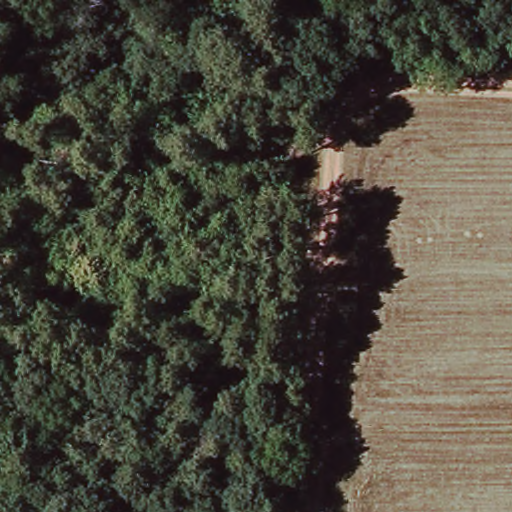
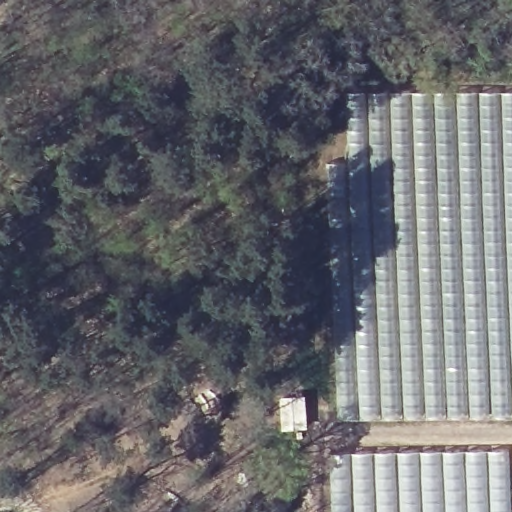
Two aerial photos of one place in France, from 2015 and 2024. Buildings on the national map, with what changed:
new [(354,290),(371,289),(374,233),(381,232),(382,235),(387,235),(387,228),(389,199),(387,162),(376,164),(377,169),(369,169),(364,94),(382,92),(512,91),(512,419),(502,419),(335,420),(334,343),(352,342),(354,290)]
new [(306,395),(308,428),(282,430),(280,396),(306,395)]

